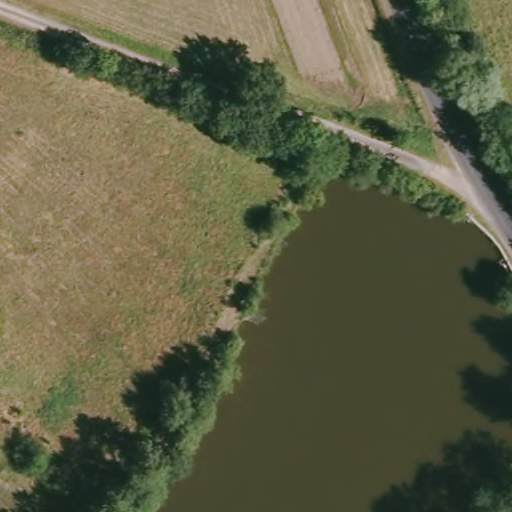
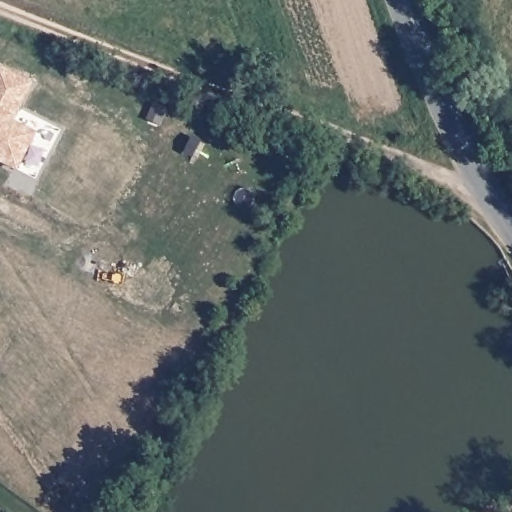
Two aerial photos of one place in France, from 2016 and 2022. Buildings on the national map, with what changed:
new [(0,162),(0,67),(33,83),(15,120),(36,132),(17,169),(0,162)]

